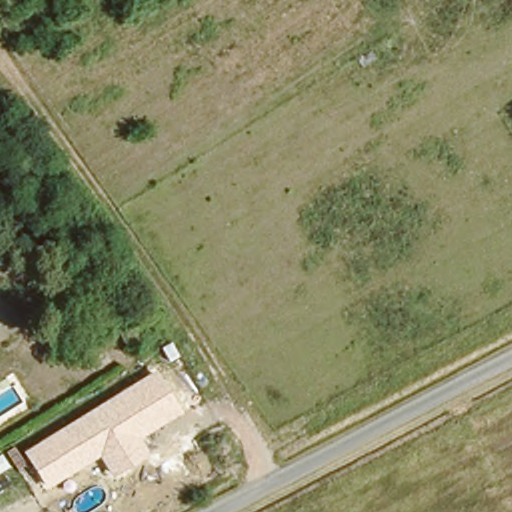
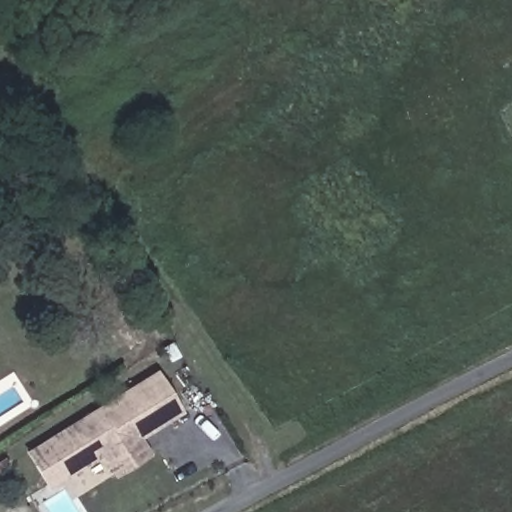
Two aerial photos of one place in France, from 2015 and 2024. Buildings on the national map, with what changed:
unchanged [(141,438),(150,454),(114,477),(101,456),(47,489),(24,451),(156,370),(182,413),(141,438)]

